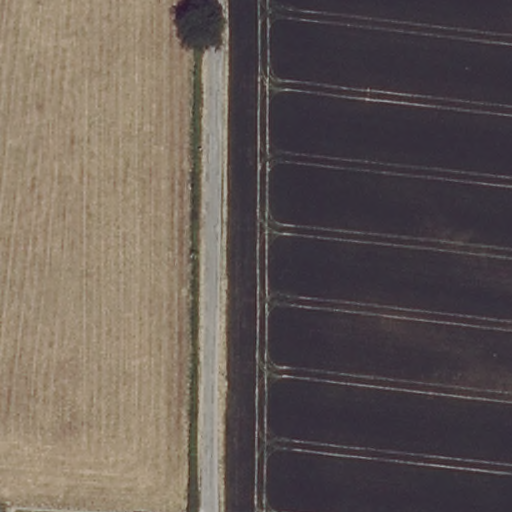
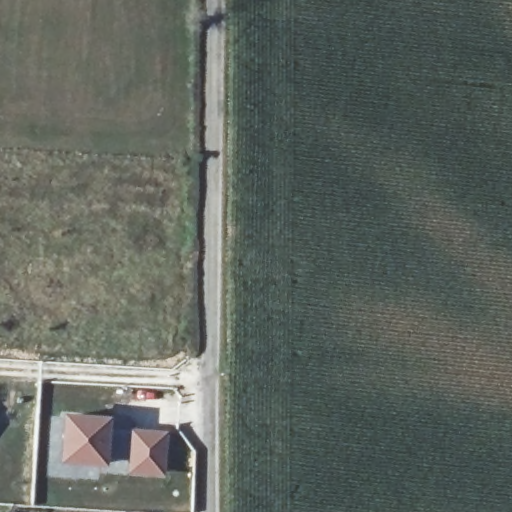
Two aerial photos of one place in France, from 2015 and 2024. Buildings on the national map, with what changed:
new [(67,421),(107,422),(107,432),(164,436),(162,473),(132,472),(132,462),(105,461),(104,466),(64,464),(67,421)]

